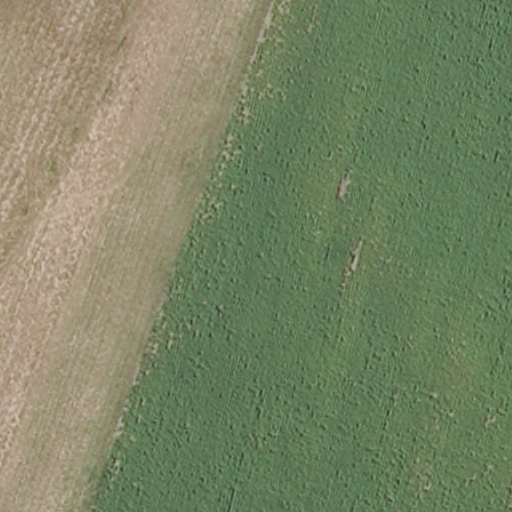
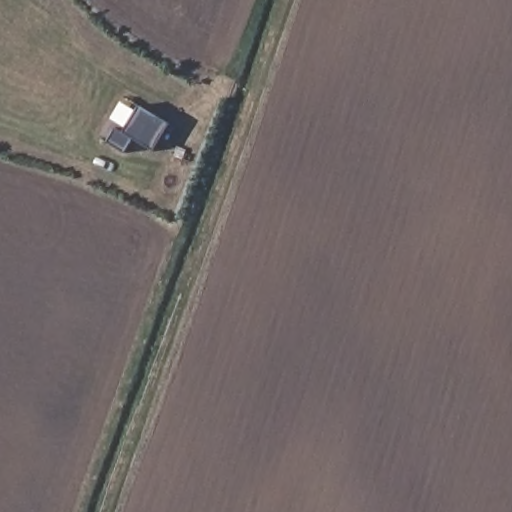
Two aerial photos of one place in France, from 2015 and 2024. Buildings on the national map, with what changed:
new [(154,150),(133,138),(125,152),(106,141),(115,127),(125,132),(140,106),(170,124),(154,150)]

